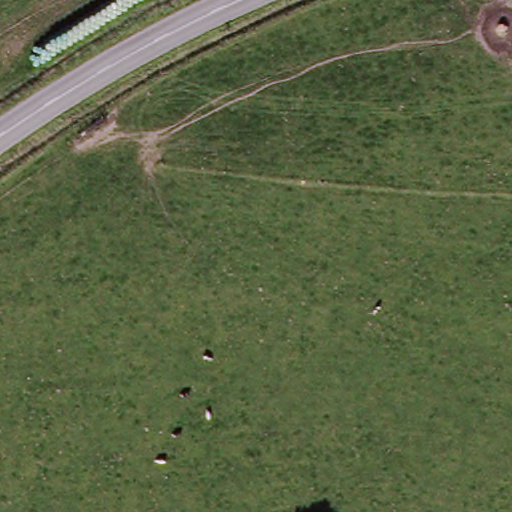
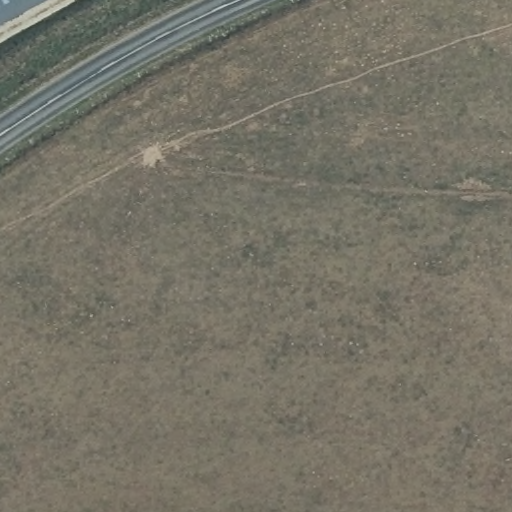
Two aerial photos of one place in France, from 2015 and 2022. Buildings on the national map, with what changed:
new [(0,0),(48,0),(0,26),(0,0)]

